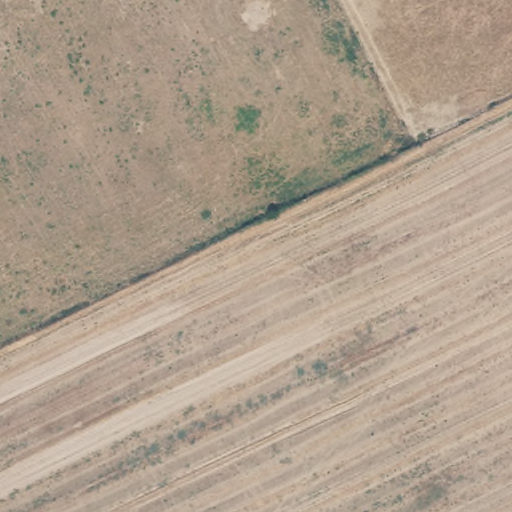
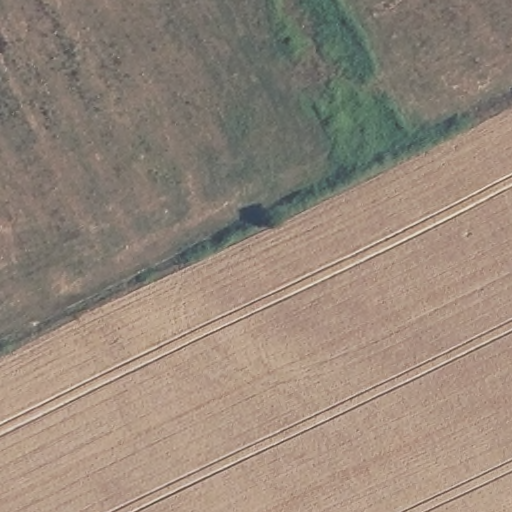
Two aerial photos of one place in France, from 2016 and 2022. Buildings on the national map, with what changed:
[]

